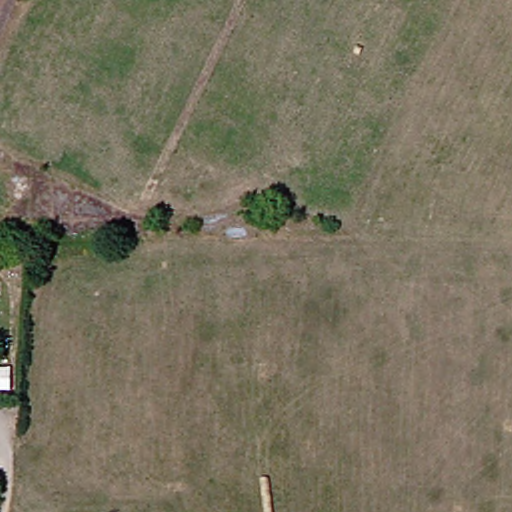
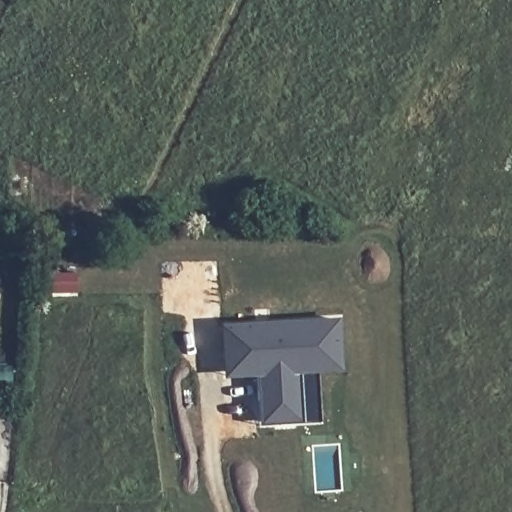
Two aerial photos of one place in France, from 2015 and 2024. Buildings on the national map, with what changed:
new [(341,372),(318,373),(320,422),(261,425),(260,377),(224,378),(220,325),(340,319),(341,372)]

